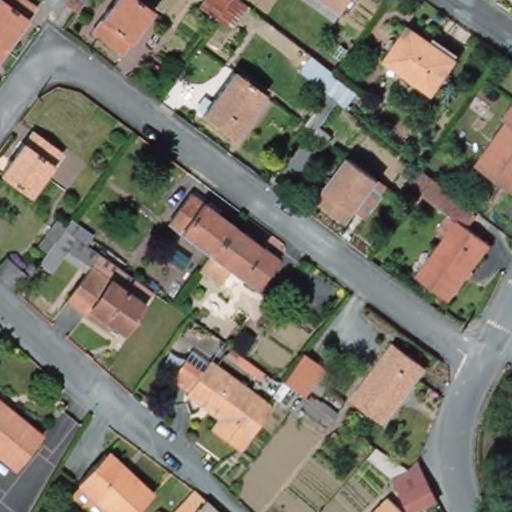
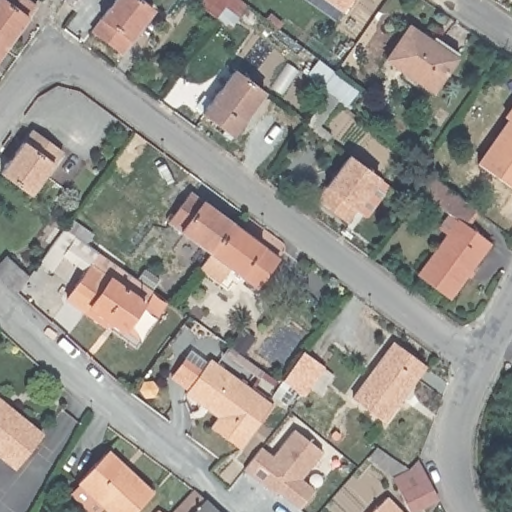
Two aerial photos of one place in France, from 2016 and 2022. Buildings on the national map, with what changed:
unchanged [(36,10),(6,52),(0,49),(0,0),(22,0),(36,10)]
unchanged [(57,0),(77,0),(71,9),(57,0)]
unchanged [(155,11),(124,52),(92,29),(114,0),(140,0),(155,11)]
unchanged [(252,10),(233,34),(217,22),(201,10),(207,0),(239,0),(244,4),(252,10)]
unchanged [(345,13),(326,0),(353,0),(345,13)]
unchanged [(458,58),(435,91),(390,60),(413,28),(458,58)]
unchanged [(303,49),(362,90),(351,106),(290,64),(293,59),(289,55),(297,43),(303,49)]
unchanged [(0,60),(0,49),(6,52),(0,60)]
unchanged [(262,94),(231,135),(200,112),(232,71),(262,94)]
unchanged [(478,166),(512,118),(512,187),(478,166)]
unchanged [(28,195),(0,174),(0,169),(30,130),(60,151),(28,195)]
unchanged [(382,180),(351,221),(321,199),(352,157),(382,180)]
unchanged [(490,248),(449,302),(419,280),(461,225),(424,195),(412,185),(422,170),(427,175),(435,180),(444,187),(478,214),(466,230),(490,248)]
unchanged [(215,256),(172,225),(194,196),(236,228),(215,256)]
unchanged [(236,228),(283,263),(262,291),(244,278),(235,271),(223,287),(204,273),(206,270),(215,256),(236,228)]
unchanged [(77,240),(52,273),(42,265),(66,232),(77,240)]
unchanged [(26,276),(15,290),(0,277),(0,261),(4,257),(26,276)]
unchanged [(146,307),(92,270),(102,257),(156,295),(146,307)]
unchanged [(146,307),(126,335),(112,325),(108,330),(69,301),(92,270),(146,307)]
unchanged [(426,366),(384,421),(353,398),(395,343),(426,366)]
unchanged [(186,389),(169,376),(189,350),(206,361),(207,358),(212,362),(272,405),(240,448),(211,426),(217,417),(187,395),(183,392),(186,389)]
unchanged [(324,365),(302,392),(282,376),(304,350),(324,365)]
unchanged [(14,469),(0,457),(0,399),(42,435),(14,469)]
new [(299,507),(278,491),(274,495),(244,470),(261,448),(272,456),(293,430),(323,453),(301,480),(315,490),(299,507)]
unchanged [(111,512),(78,483),(104,452),(126,471),(129,470),(152,492),(135,512),(111,512)]
unchanged [(416,512),(413,512),(401,488),(397,480),(412,471),(414,472),(418,462),(440,500),(416,512)]
unchanged [(196,489),(212,503),(221,512),(169,512),(190,489),(196,489)]
unchanged [(402,512),(376,512),(390,500),(402,512)]
unchanged [(162,512),(155,512),(158,508),(162,512)]

